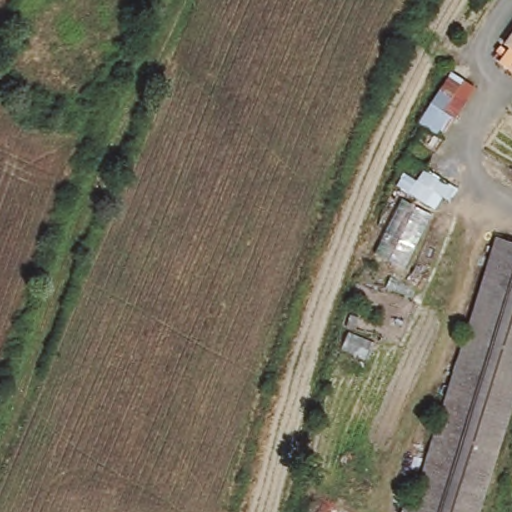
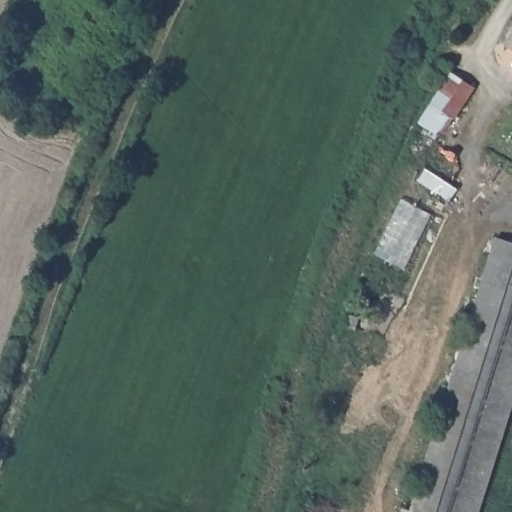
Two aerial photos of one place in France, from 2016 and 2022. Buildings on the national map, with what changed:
unchanged [(497,60),(511,45),(504,39),(512,29),(512,72),(497,60)]
unchanged [(443,138),(418,123),(451,71),(478,88),(443,138)]
unchanged [(474,512),(408,512),(413,496),(501,239),(512,243),(512,402),(474,512)]

